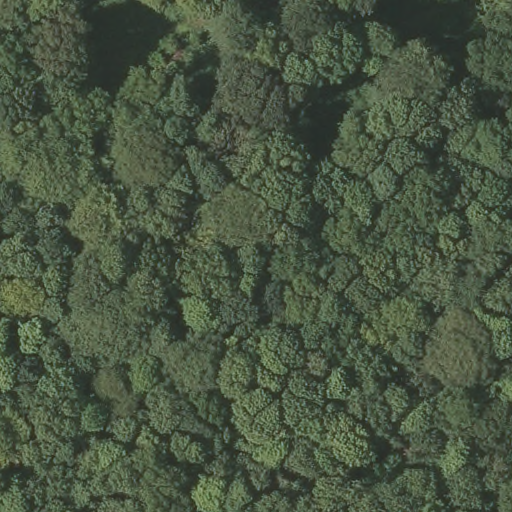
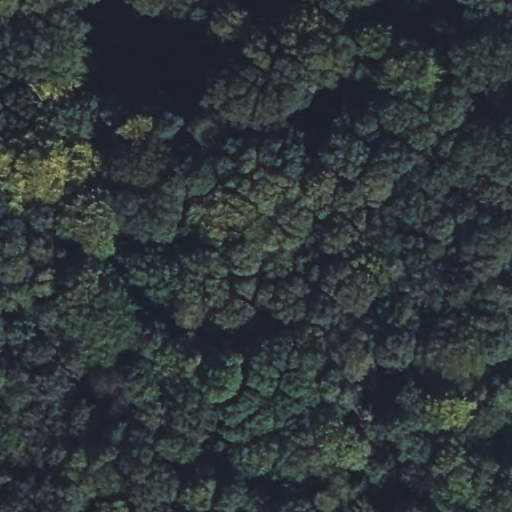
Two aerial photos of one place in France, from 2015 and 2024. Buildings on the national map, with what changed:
unchanged [(100,234),(142,262),(120,296),(78,267),(100,234)]

